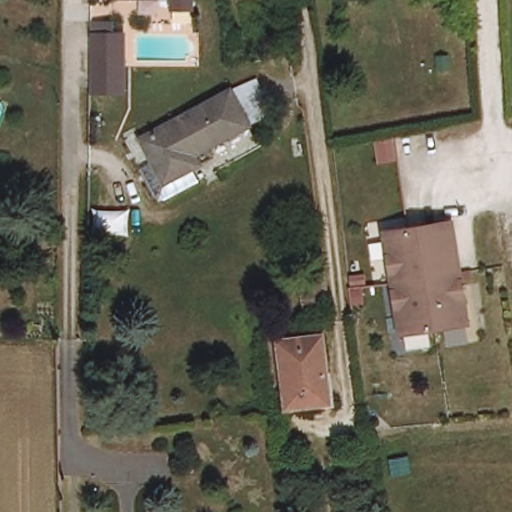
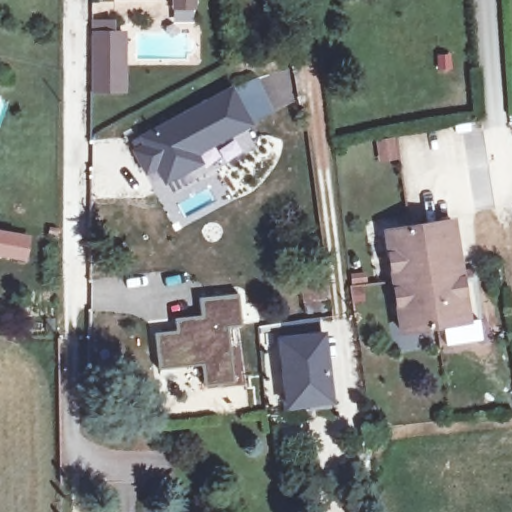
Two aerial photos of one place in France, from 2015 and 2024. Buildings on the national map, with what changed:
unchanged [(194,3),(171,3),(171,0),(194,0),(194,3)]
unchanged [(127,90),(95,90),(95,32),(96,19),(116,20),(115,33),(128,33),(127,90)]
unchanged [(168,177),(160,174),(148,146),(162,141),(152,117),(247,86),(248,85),(260,122),(251,125),(214,136),(211,130),(192,135),(198,150),(197,151),(202,166),(168,177)]
unchanged [(390,228),(457,219),(470,320),(403,329),(390,228)]
new [(32,237),(27,261),(0,255),(0,231),(32,237)]
new [(180,330),(179,317),(202,314),(199,297),(237,291),(242,323),(227,325),(235,380),(204,385),(202,364),(159,369),(155,334),(180,330)]
unchanged [(277,339),(325,335),(333,405),(284,411),(277,339)]

